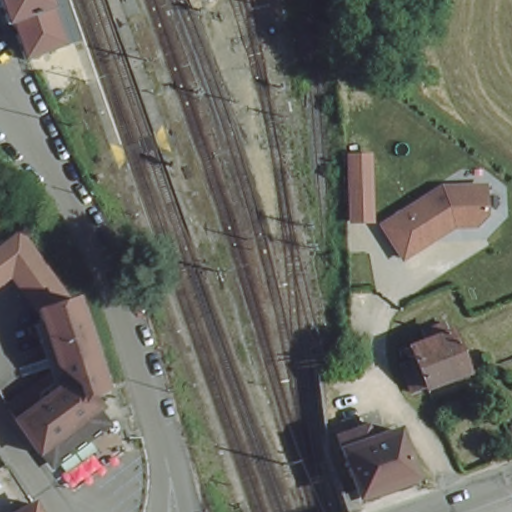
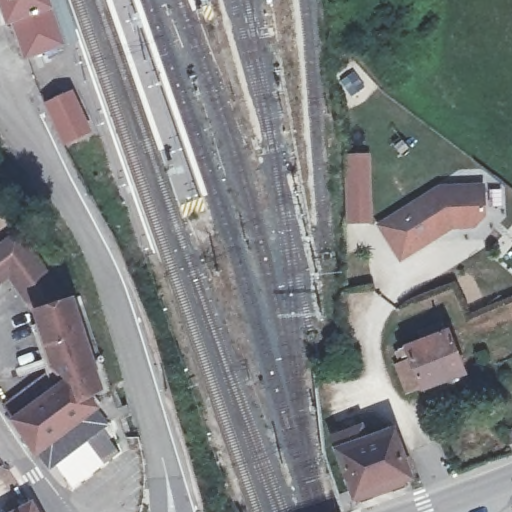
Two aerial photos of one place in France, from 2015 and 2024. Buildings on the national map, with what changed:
unchanged [(78,42),(23,61),(9,24),(0,28),(0,0),(63,0),(78,42)]
new [(68,82),(88,121),(63,134),(44,94),(68,82)]
unchanged [(368,154),(368,224),(346,224),(344,154),(368,154)]
unchanged [(370,222),(430,180),(482,179),(480,225),(450,226),(394,257),(370,222)]
unchanged [(10,278),(0,284),(0,239),(20,226),(67,297),(27,311),(10,278)]
unchanged [(97,387),(90,388),(96,402),(94,405),(103,414),(102,423),(54,460),(42,457),(36,448),(31,451),(25,440),(17,428),(1,403),(24,385),(32,393),(37,388),(42,394),(62,378),(49,362),(27,311),(67,297),(97,387)]
unchanged [(417,388),(402,393),(394,370),(407,366),(402,352),(418,345),(414,335),(437,326),(442,336),(447,334),(462,375),(418,392),(417,388)]
unchanged [(408,483),(350,503),(329,445),(360,433),(364,446),(390,437),(408,483)]
unchanged [(27,512),(38,507),(41,512),(27,512)]

